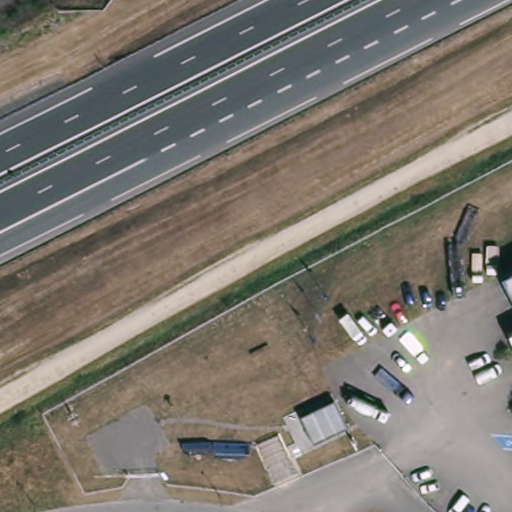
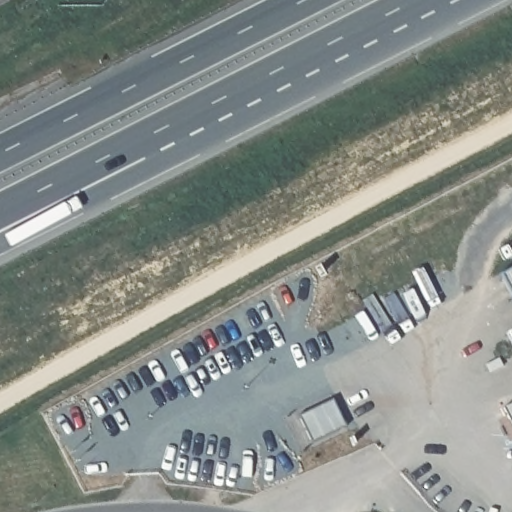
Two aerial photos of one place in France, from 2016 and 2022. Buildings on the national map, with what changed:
unchanged [(498,277),(512,269),(512,303),(498,277)]
unchanged [(512,329),(512,354),(501,335),(512,329)]

